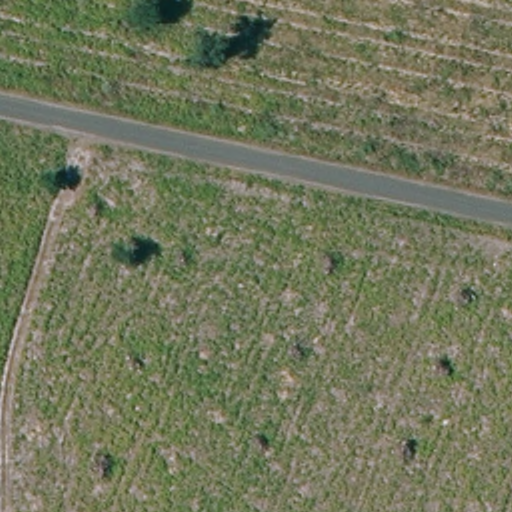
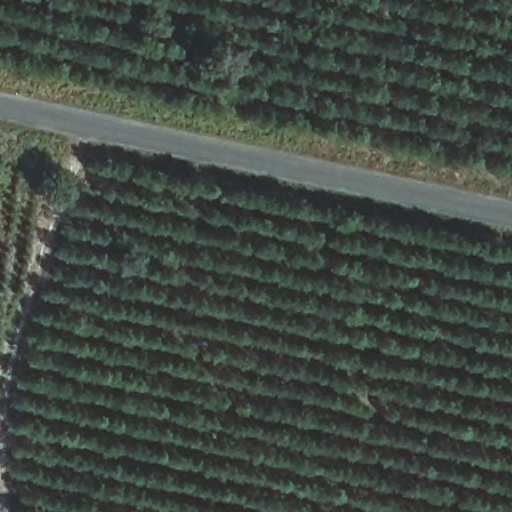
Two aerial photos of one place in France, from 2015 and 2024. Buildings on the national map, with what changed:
[]

